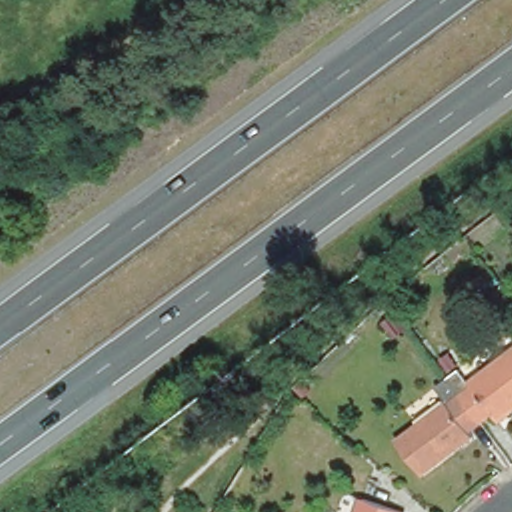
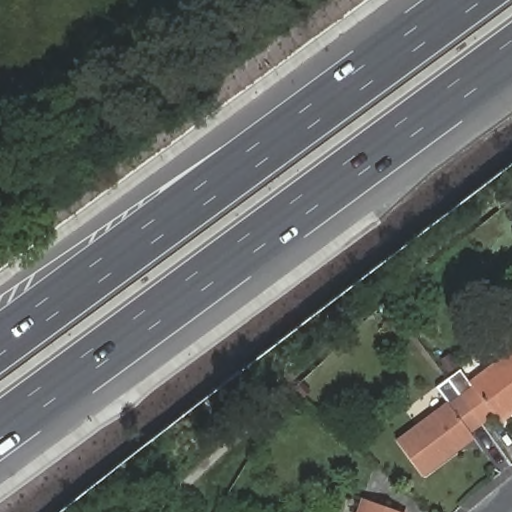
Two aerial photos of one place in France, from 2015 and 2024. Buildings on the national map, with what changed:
unchanged [(391,343),(373,321),(385,311),(403,333),(391,343)]
unchanged [(447,379),(461,370),(470,381),(512,352),(512,411),(499,421),(494,416),(481,424),(447,379)]
unchanged [(472,431),(475,435),(423,474),(398,442),(449,403),(436,387),(447,379),(481,424),(472,431)]
unchanged [(365,498),(403,512),(360,512),(365,498)]

